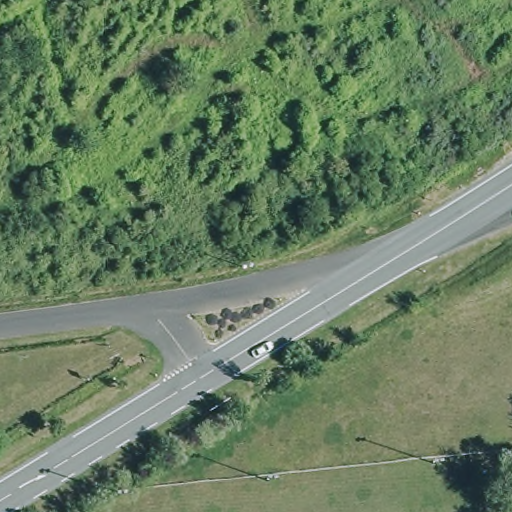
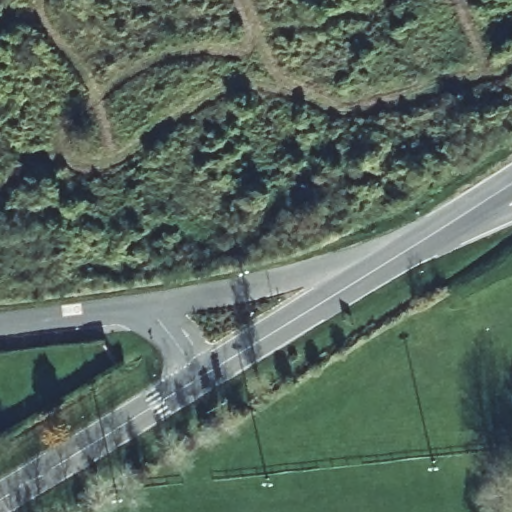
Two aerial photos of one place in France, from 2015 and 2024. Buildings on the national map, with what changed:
[]

